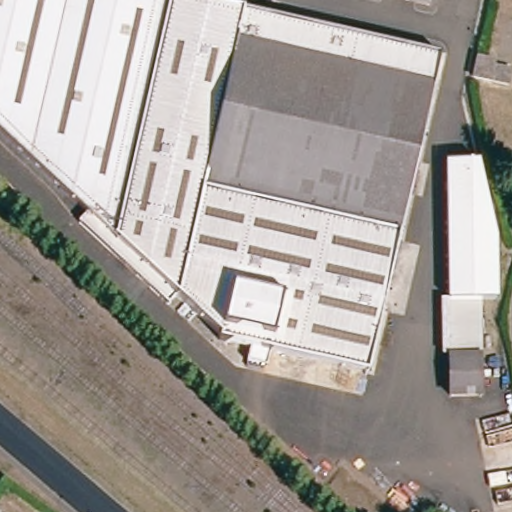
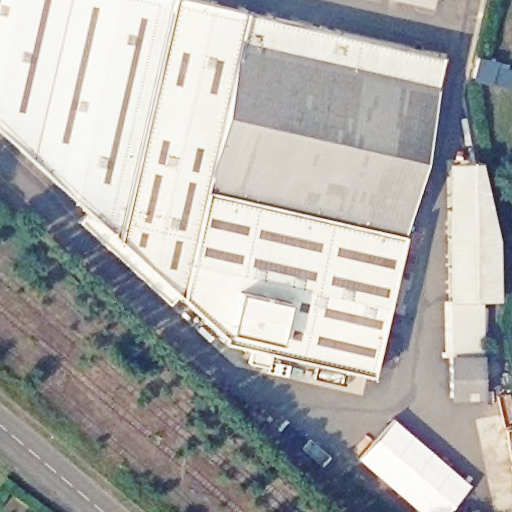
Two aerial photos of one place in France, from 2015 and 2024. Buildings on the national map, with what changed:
unchanged [(435,62),(358,381),(322,372),(209,345),(210,341),(169,298),(161,307),(76,219),(84,211),(0,124),(0,0),(179,0),(435,62)]
new [(396,0),(433,0),(431,8),(396,0)]
unchanged [(494,62),(493,67),(510,71),(505,86),(475,76),(478,58),(494,62)]
unchanged [(478,300),(481,353),(482,396),(448,398),(447,355),(441,354),(440,298),(448,299),(446,163),(479,160),(496,240),(496,299),(478,300)]
new [(469,483),(445,512),(419,512),(356,458),(392,417),(469,483)]
demolished [(395,512),(336,460),(358,437),(436,504),(430,512),(395,512)]

